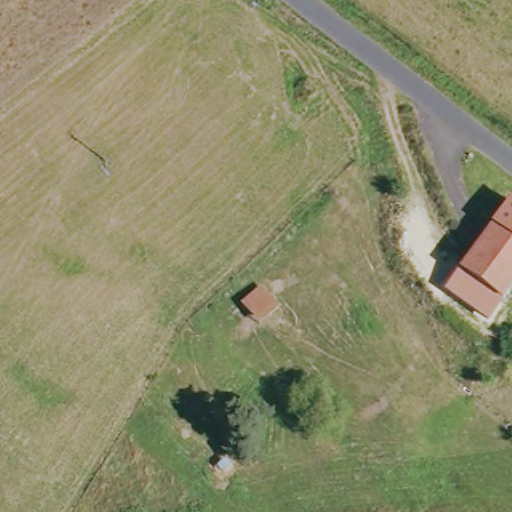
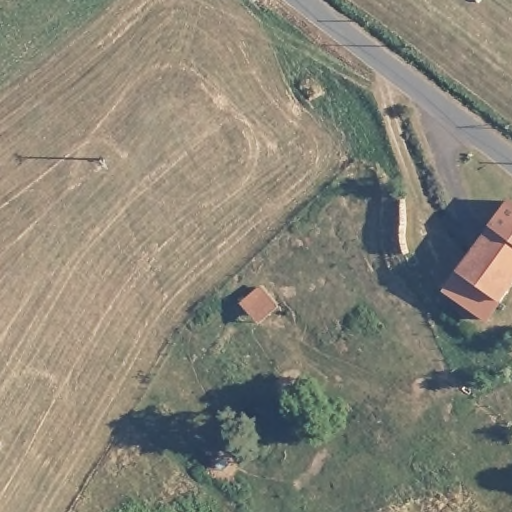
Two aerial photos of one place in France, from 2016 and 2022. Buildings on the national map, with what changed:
unchanged [(493,320),(465,299),(473,285),(462,275),(512,203),(512,291),(493,320)]

